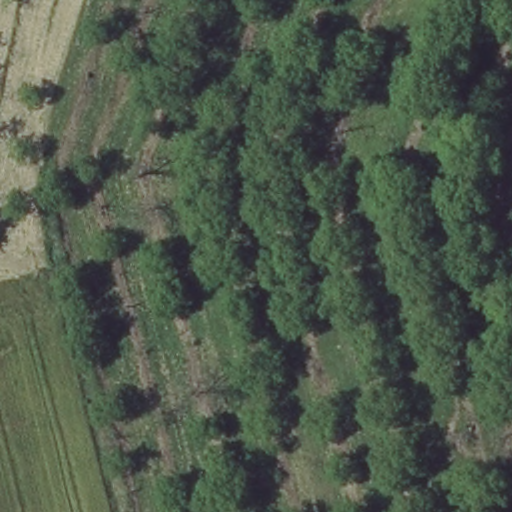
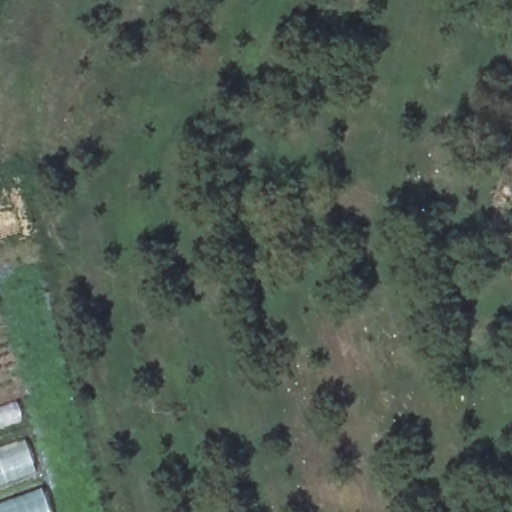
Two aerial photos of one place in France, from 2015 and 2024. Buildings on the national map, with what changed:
new [(37,472),(0,486),(0,447),(25,438),(37,472)]
new [(50,512),(0,512),(0,504),(42,488),(50,512)]

